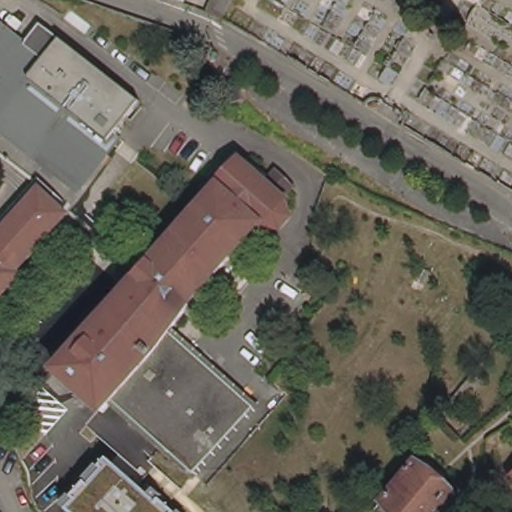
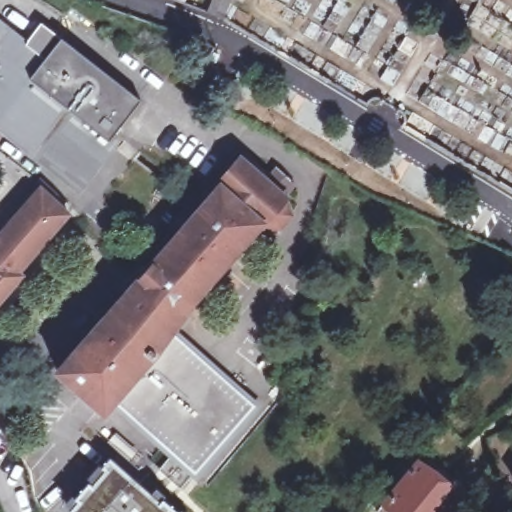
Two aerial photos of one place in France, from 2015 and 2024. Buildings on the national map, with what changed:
unchanged [(186,8),(168,2),(169,0),(189,0),(186,8)]
unchanged [(213,0),(228,0),(221,18),(220,22),(206,17),(213,0)]
unchanged [(60,43),(138,108),(113,141),(75,188),(0,125),(0,23),(45,61),(60,43)]
unchanged [(201,302),(191,313),(173,340),(256,412),(197,481),(181,468),(114,410),(113,410),(104,421),(100,417),(58,381),(117,313),(111,308),(118,299),(124,304),(136,291),(144,280),(138,275),(147,265),(153,270),(198,218),(201,215),(216,198),(213,195),(237,168),(263,190),(273,179),(291,195),(283,206),(285,209),(282,212),(289,226),(279,239),(278,238),(276,244),(261,240),(263,234),(260,237),(258,234),(201,302)]
unchanged [(37,190),(41,185),(64,206),(59,211),(61,213),(71,223),(60,237),(23,282),(26,285),(0,318),(0,230),(35,188),(37,190)]
unchanged [(446,512),(394,512),(384,504),(424,452),(466,487),(446,512)]
unchanged [(150,494),(155,488),(182,512),(68,512),(64,508),(108,457),(150,494)]
unchanged [(492,512),(473,496),(489,476),(499,485),(493,512),(492,512)]

